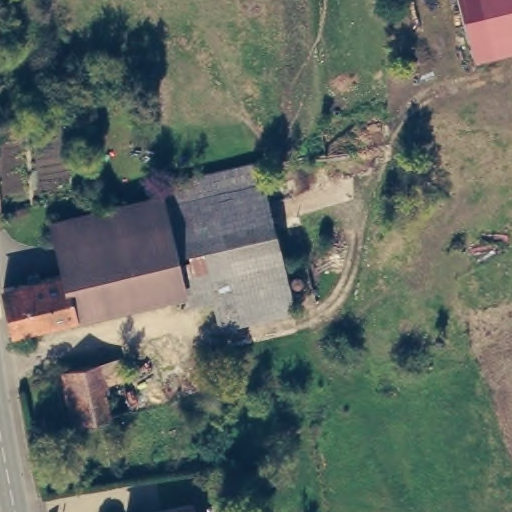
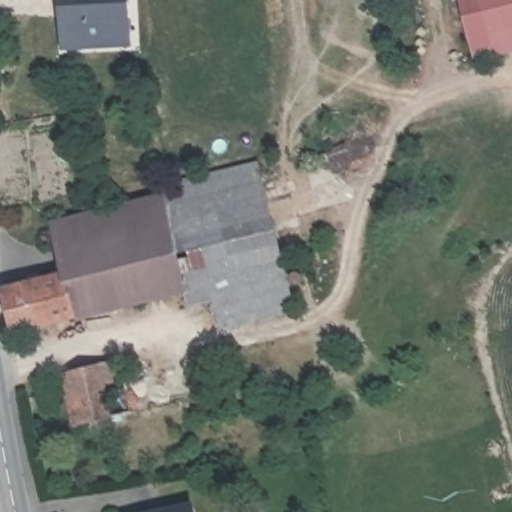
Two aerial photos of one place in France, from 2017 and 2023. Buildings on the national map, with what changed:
new [(69,19),(69,0),(128,0),(129,36),(90,43),(90,51),(65,52),(62,20),(69,19)]
unchanged [(474,65),(457,0),(512,0),(512,55),(474,65)]
unchanged [(156,193),(154,183),(259,159),(291,308),(216,327),(203,275),(178,282),(156,193)]
unchanged [(156,193),(178,282),(179,287),(109,304),(68,314),(58,268),(48,221),(156,193)]
unchanged [(68,314),(8,328),(0,289),(0,283),(58,268),(68,314)]
unchanged [(111,362),(123,410),(70,422),(59,374),(111,362)]
unchanged [(162,512),(194,505),(196,512),(162,512)]

